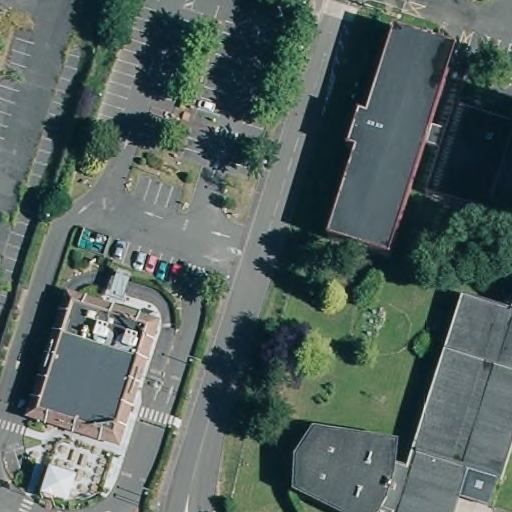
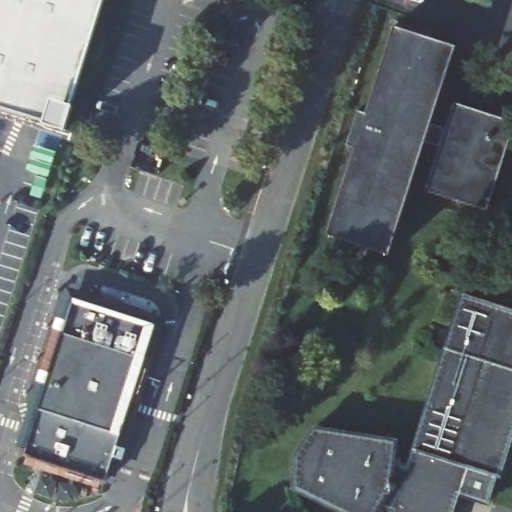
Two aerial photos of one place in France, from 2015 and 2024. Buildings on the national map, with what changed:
new [(71,142),(0,120),(0,0),(111,0),(71,142)]
unchanged [(507,151),(496,185),(488,211),(424,190),(440,143),(426,139),(389,256),(328,236),(396,27),(456,45),(432,119),(446,124),(453,101),(512,120),(512,135),(507,151)]
unchanged [(512,308),(512,368),(450,347),(466,294),(512,308)]
unchanged [(158,324),(108,486),(27,460),(77,298),(158,324)]
unchanged [(512,368),(512,430),(497,477),(465,467),(449,512),(396,512),(410,470),(450,347),(512,368)]
unchanged [(389,512),(379,509),(376,512),(339,512),(292,489),(296,456),(313,429),(396,441),(394,465),(410,470),(396,512),(389,512)]

